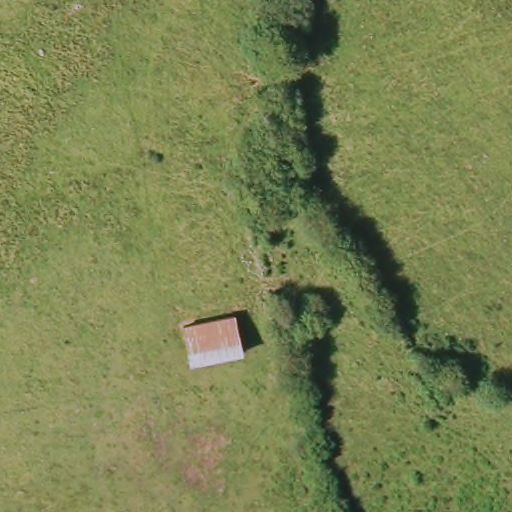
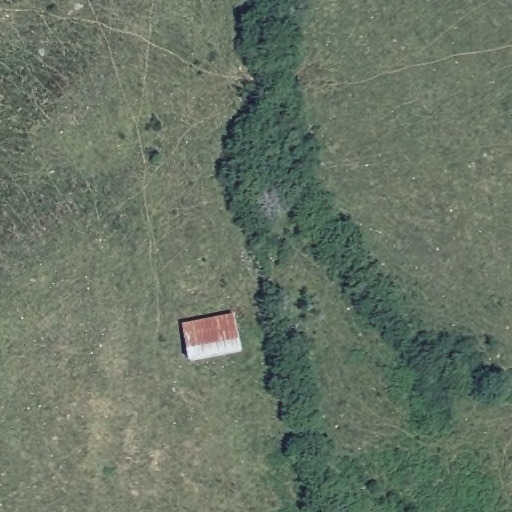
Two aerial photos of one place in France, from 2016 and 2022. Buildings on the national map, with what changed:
unchanged [(233,315),(240,350),(188,359),(182,325),(233,315)]

